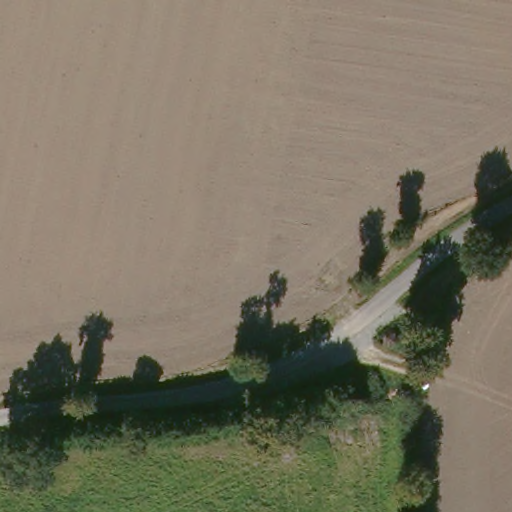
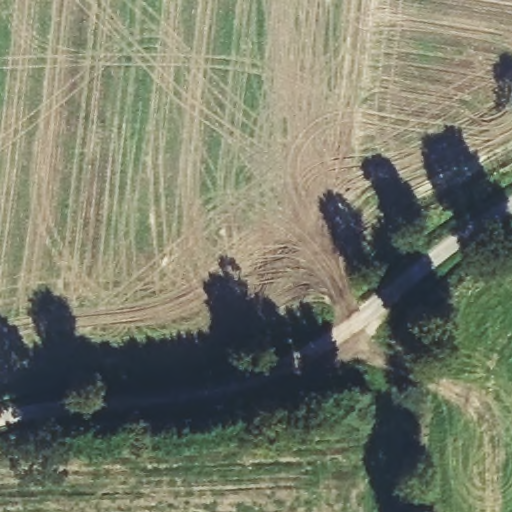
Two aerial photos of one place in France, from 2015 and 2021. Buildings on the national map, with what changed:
[]

